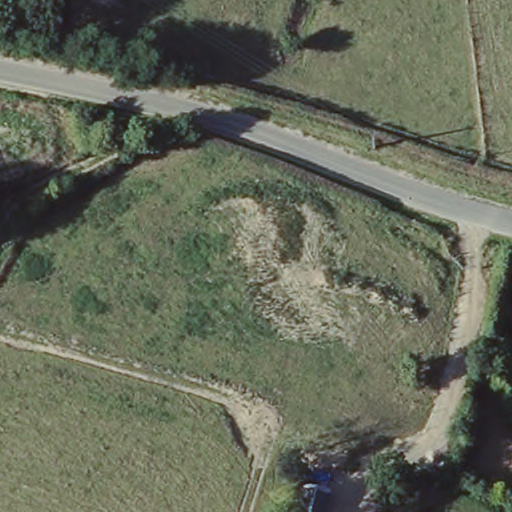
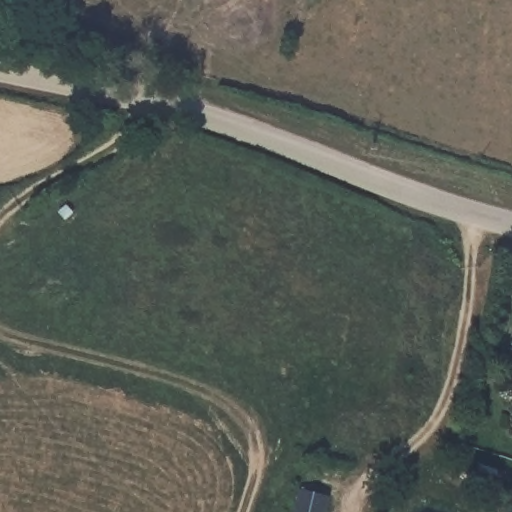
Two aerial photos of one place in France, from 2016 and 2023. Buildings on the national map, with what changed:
unchanged [(296,476),(311,479),(307,512),(305,512),(290,508),(296,476)]

